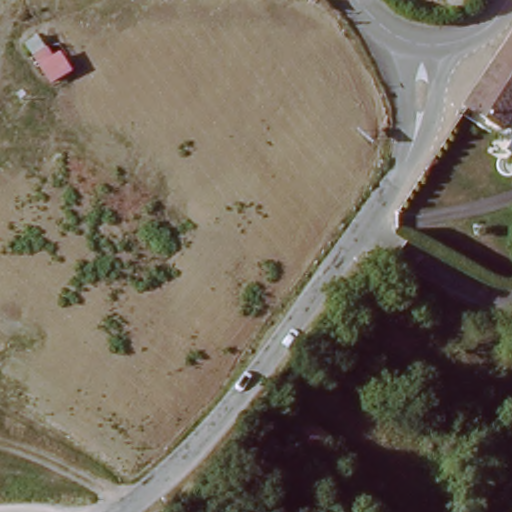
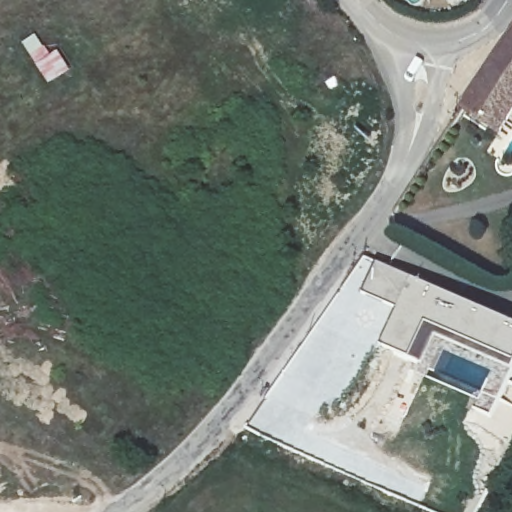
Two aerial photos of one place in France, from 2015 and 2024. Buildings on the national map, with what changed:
unchanged [(512,31),(512,107),(497,131),(462,107),(512,31)]
new [(409,361),(380,348),(398,311),(363,294),(377,264),(512,327),(512,364),(427,324),(409,361)]
new [(481,402),(426,376),(429,370),(441,347),(494,373),(484,395),(481,402)]

